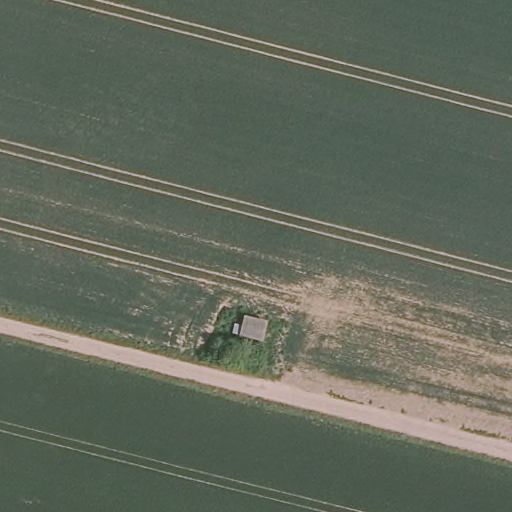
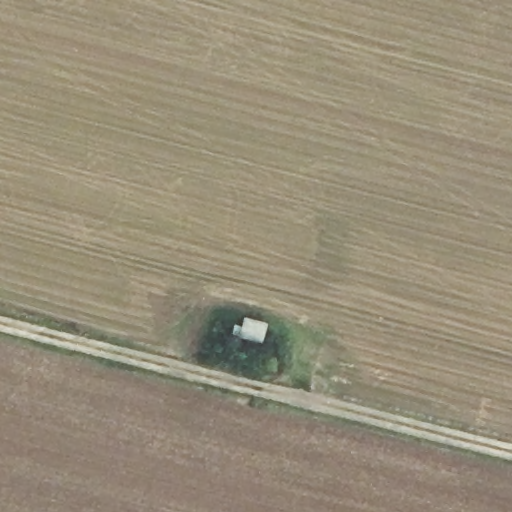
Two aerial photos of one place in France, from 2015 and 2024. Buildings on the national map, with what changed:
unchanged [(230,347),(238,348),(240,339),(265,345),(260,363),(227,355),(230,347)]

